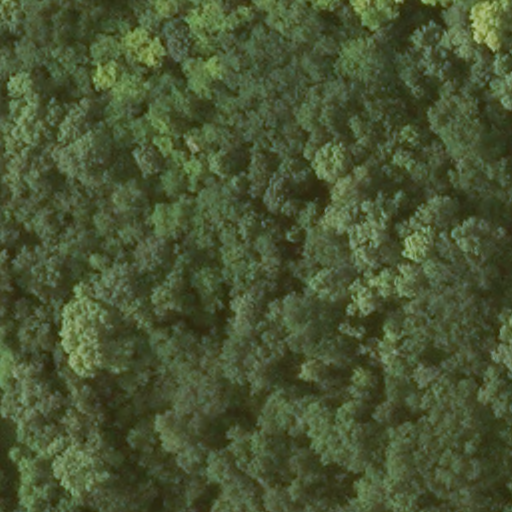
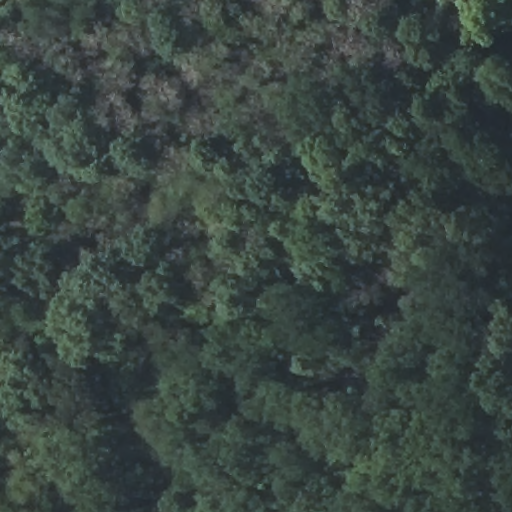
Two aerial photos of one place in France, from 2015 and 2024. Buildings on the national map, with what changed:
[]

